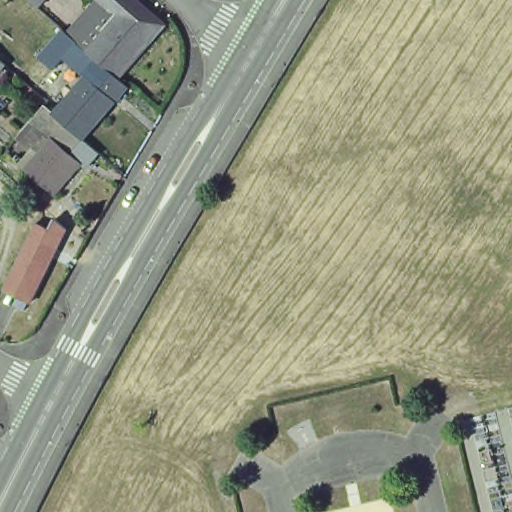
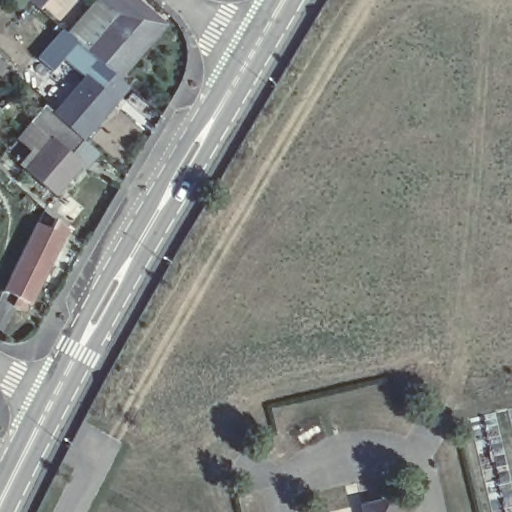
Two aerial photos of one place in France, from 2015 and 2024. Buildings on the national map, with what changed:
unchanged [(36,11),(24,0),(47,0),(36,11)]
unchanged [(56,64),(42,52),(62,29),(73,39),(98,11),(90,3),(92,0),(130,0),(147,15),(136,29),(147,40),(116,75),(127,85),(114,101),(82,139),(64,124),(51,112),(83,75),(62,56),(56,64)]
unchanged [(84,166),(80,163),(55,193),(25,167),(49,139),(30,122),(43,106),(51,112),(64,124),(82,139),(97,151),(84,166)]
unchanged [(0,140),(0,131),(5,135),(0,140)]
unchanged [(52,236),(26,290),(8,282),(35,227),(52,236)]

